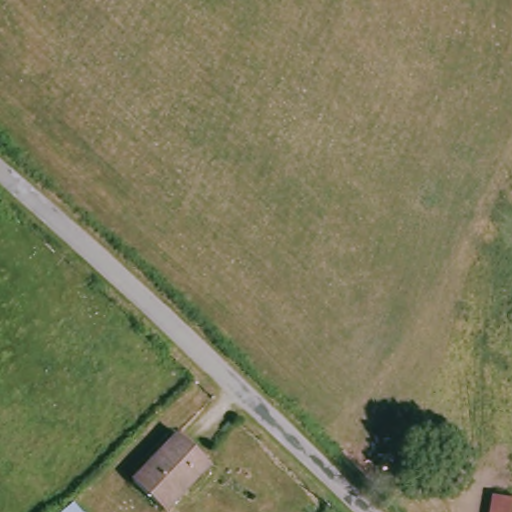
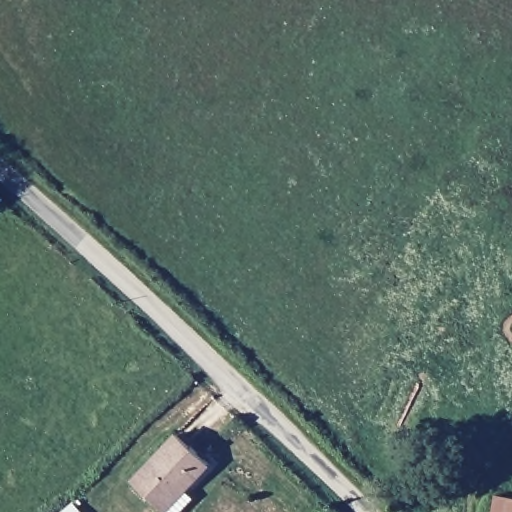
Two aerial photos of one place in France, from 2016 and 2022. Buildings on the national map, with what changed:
unchanged [(141,483),(185,434),(217,464),(195,490),(175,512),(174,512),(168,507),(141,483)]
unchanged [(490,512),(492,493),(512,494),(512,512),(490,512)]

